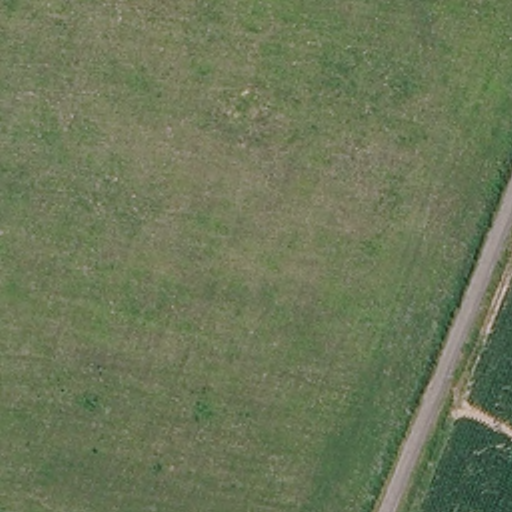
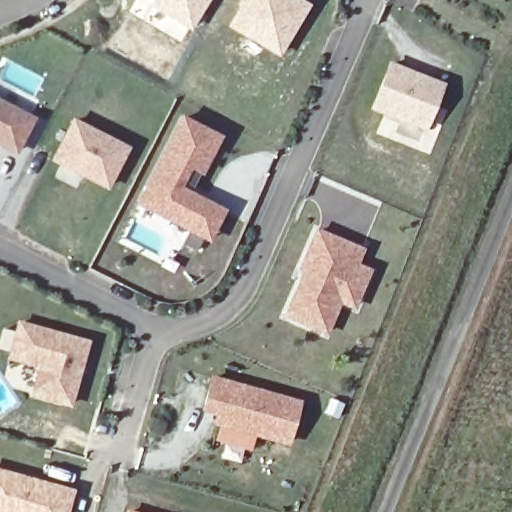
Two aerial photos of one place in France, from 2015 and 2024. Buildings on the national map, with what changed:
new [(210,0),(191,32),(149,6),(153,0),(210,0)]
new [(296,0),(307,6),(278,54),(231,25),(246,0),(296,0)]
new [(371,109),(389,61),(446,84),(427,131),(371,109)]
new [(17,155),(0,146),(0,98),(38,116),(17,155)]
new [(209,239),(183,226),(139,203),(182,119),(219,137),(201,172),(195,169),(184,191),(197,198),(223,211),(209,239)]
new [(73,121),(126,149),(106,187),(59,163),(53,159),(58,150),(73,121)]
new [(352,307),(338,301),(324,333),(285,315),(307,264),(303,262),(316,232),(360,250),(354,265),(367,272),(352,307)]
new [(30,395),(39,368),(7,359),(18,320),(91,339),(72,407),(30,395)]
new [(211,379),(298,404),(287,444),(215,424),(217,414),(203,409),(211,379)]
new [(76,489),(69,512),(0,512),(0,467),(76,489)]
new [(127,509),(136,512),(126,512),(127,509)]

